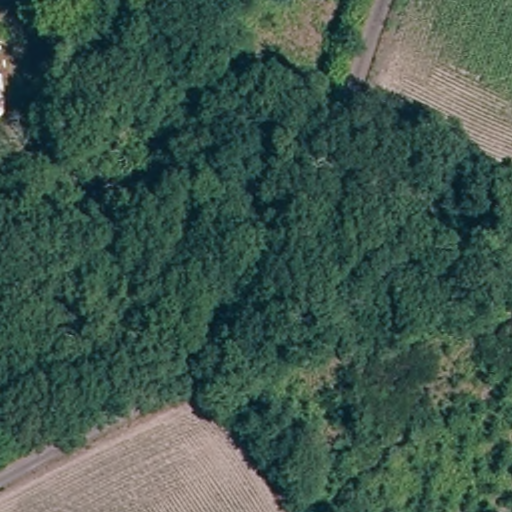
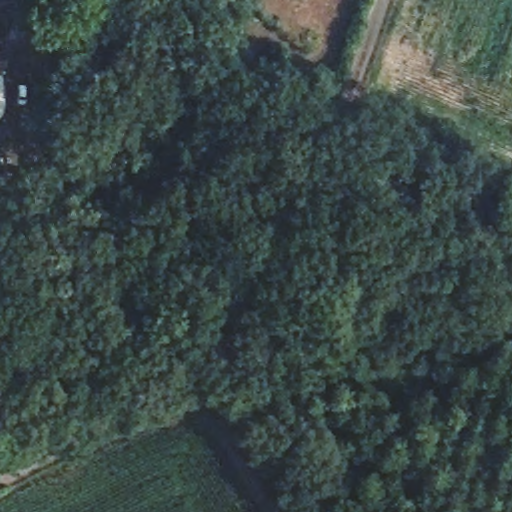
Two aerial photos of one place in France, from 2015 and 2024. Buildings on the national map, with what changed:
unchanged [(3,99),(0,102),(0,76),(3,75),(3,99)]

